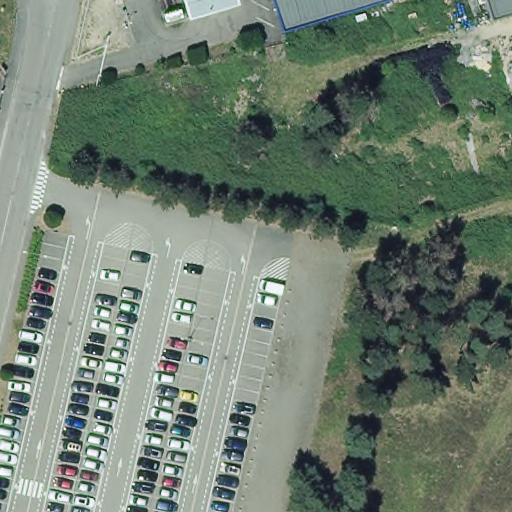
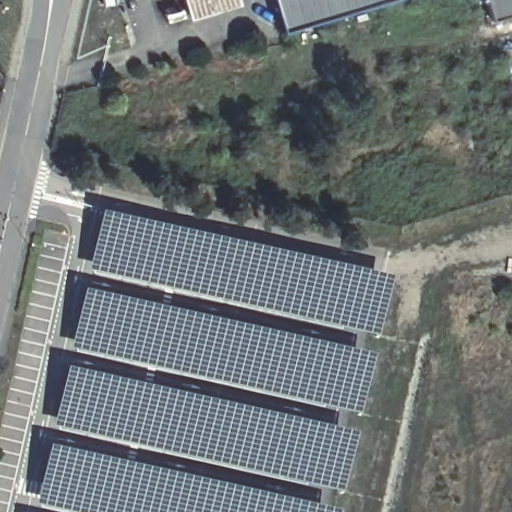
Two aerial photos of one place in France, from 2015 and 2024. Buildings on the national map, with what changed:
unchanged [(234,4),(186,21),(178,0),(233,0),(234,4)]
unchanged [(355,10),(287,32),(277,0),(352,0),(355,10)]
unchanged [(355,10),(352,0),(388,0),(355,10)]
unchanged [(490,17),(485,0),(512,0),(512,11),(490,17)]
new [(390,278),(377,336),(88,271),(101,214),(390,278)]
new [(372,357),(360,414),(71,348),(84,292),(372,357)]
new [(355,435),(342,492),(54,427),(67,370),(355,435)]
new [(69,512),(36,505),(49,447),(333,512),(69,512)]

